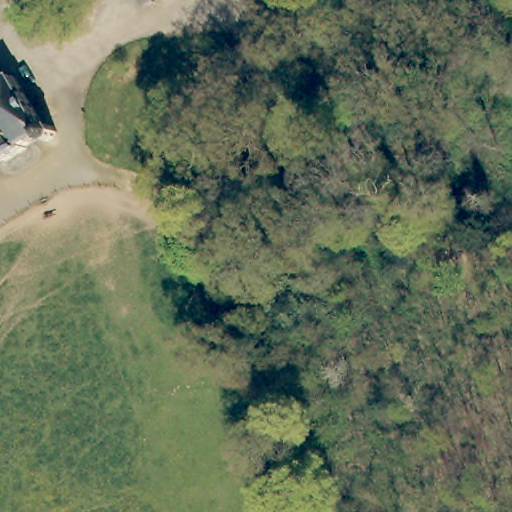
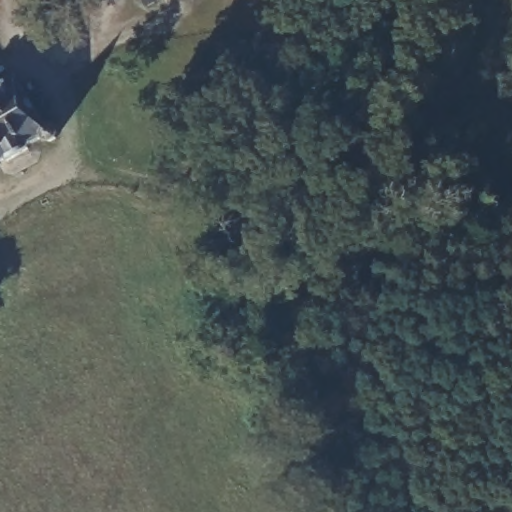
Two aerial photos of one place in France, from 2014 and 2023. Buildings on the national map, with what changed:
unchanged [(143,0),(157,0),(146,6),(143,0)]
unchanged [(269,69),(260,59),(269,52),(278,61),(269,69)]
unchanged [(49,123),(52,125),(55,128),(56,132),(55,136),(54,139),(50,142),(46,143),(42,142),(39,139),(37,136),(36,135),(30,139),(32,146),(3,159),(0,156),(0,84),(15,76),(45,123),(49,123)]

